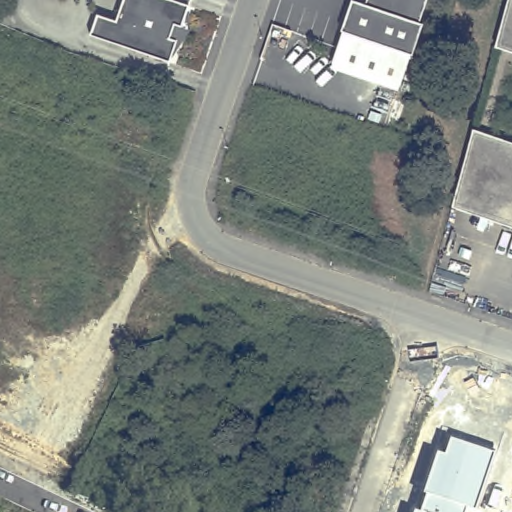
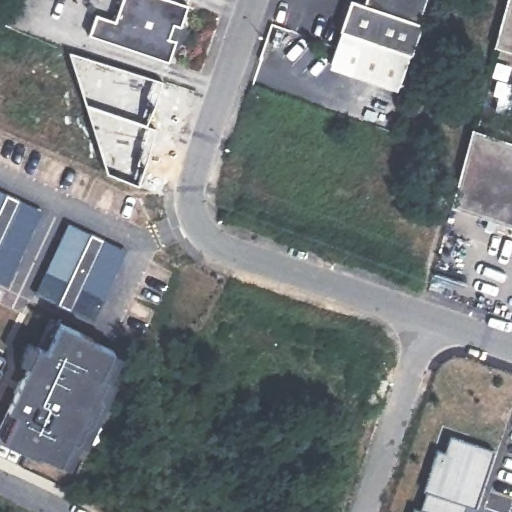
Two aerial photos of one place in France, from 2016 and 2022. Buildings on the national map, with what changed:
unchanged [(166,58),(86,31),(93,11),(112,17),(118,0),(181,0),(185,1),(166,58)]
unchanged [(420,27),(424,29),(413,59),(410,58),(344,34),(341,33),(352,3),(366,8),(369,0),(430,0),(420,27)]
unchanged [(495,45),(498,33),(507,0),(512,0),(512,50),(495,45)]
unchanged [(410,58),(399,86),(333,64),(344,34),(410,58)]
unchanged [(507,224),(452,206),(453,202),(473,128),(512,142),(512,226),(507,224)]
new [(0,282),(0,192),(41,210),(6,285),(0,282)]
new [(94,320),(34,293),(66,223),(127,249),(94,320)]
new [(110,379),(116,382),(86,445),(82,444),(70,467),(5,440),(17,415),(8,411),(27,367),(18,362),(27,342),(46,350),(59,322),(93,337),(91,341),(122,355),(110,379)]
unchanged [(422,510),(427,491),(424,490),(438,450),(446,453),(451,436),(494,451),(476,506),(466,504),(464,512),(415,512),(416,508),(422,510)]

